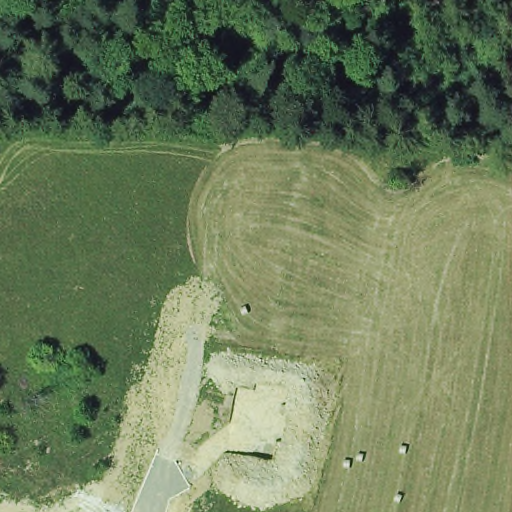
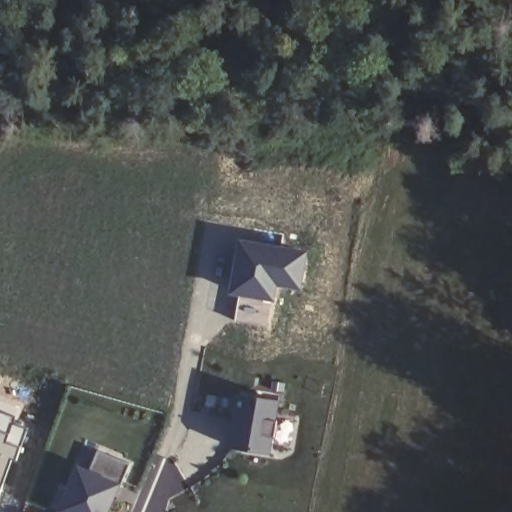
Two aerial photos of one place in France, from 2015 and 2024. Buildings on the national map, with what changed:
new [(227,293),(237,236),(309,249),(301,290),(278,287),(275,303),(269,329),(233,322),(238,295),(227,293)]
unchanged [(237,408),(241,409),(244,395),(240,395),(240,393),(277,400),(274,419),(278,420),(275,436),(271,435),(268,452),(231,446),(237,408)]
new [(14,421),(27,426),(21,445),(0,497),(0,408),(17,414),(14,421)]
new [(120,486),(113,483),(108,494),(111,495),(104,512),(67,512),(55,507),(61,485),(70,488),(78,467),(88,470),(96,449),(130,462),(120,486)]

